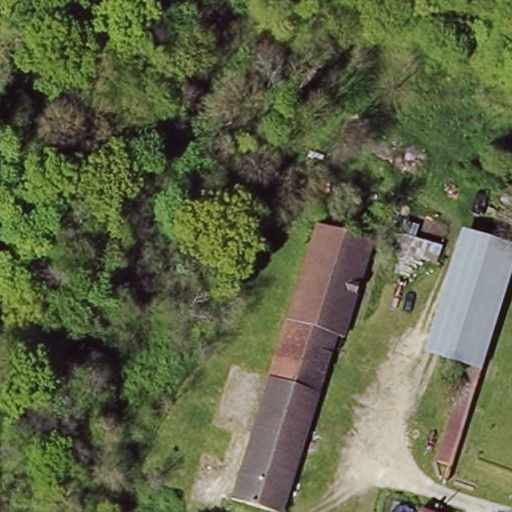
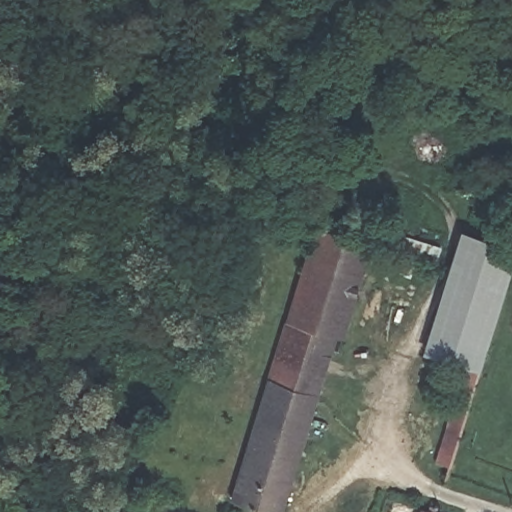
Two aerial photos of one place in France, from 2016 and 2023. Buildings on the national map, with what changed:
unchanged [(227,460),(245,465),(315,220),(375,237),(345,341),(334,338),(287,505),(220,486),(227,460)]
unchanged [(437,462),(469,365),(424,353),(460,230),(512,246),(512,281),(454,468),(437,462)]
unchanged [(407,239),(437,249),(433,262),(404,253),(407,239)]

